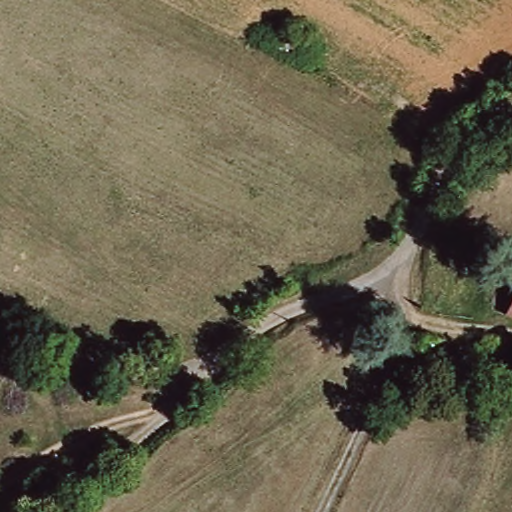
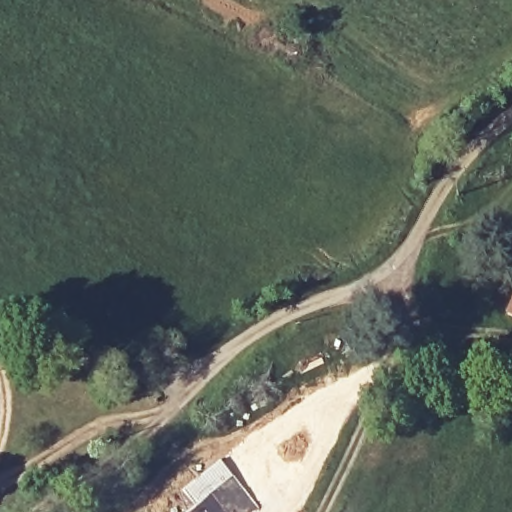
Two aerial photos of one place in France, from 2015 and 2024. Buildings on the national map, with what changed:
unchanged [(512,301),(512,314),(507,312),(512,301)]
new [(180,490),(220,458),(260,508),(255,512),(185,512),(193,505),(180,490)]

